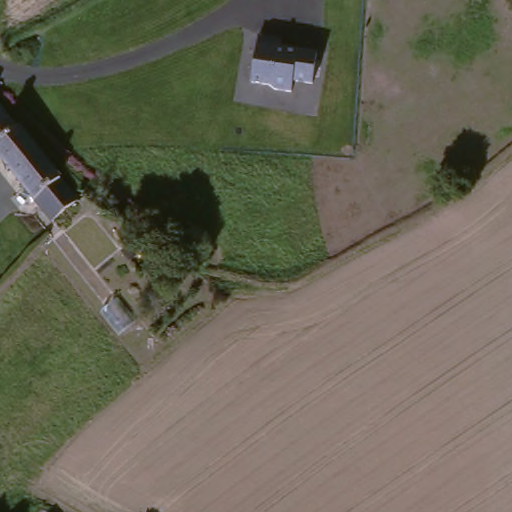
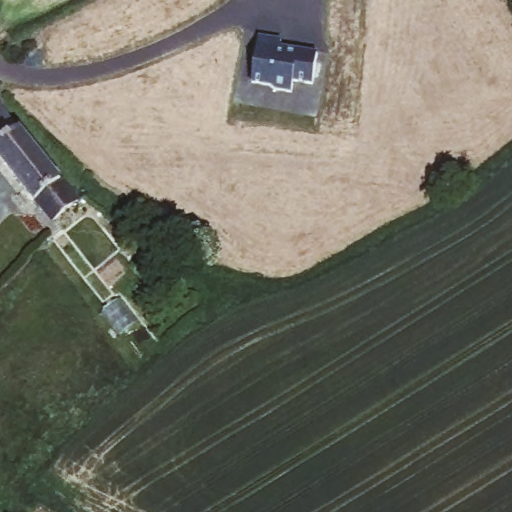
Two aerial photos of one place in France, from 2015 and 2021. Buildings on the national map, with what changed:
unchanged [(285,35),(284,42),(321,49),(316,80),(297,78),(296,90),(271,85),(271,79),(254,76),(262,30),(285,35)]
unchanged [(0,148),(0,103),(11,116),(76,197),(54,217),(0,148)]

